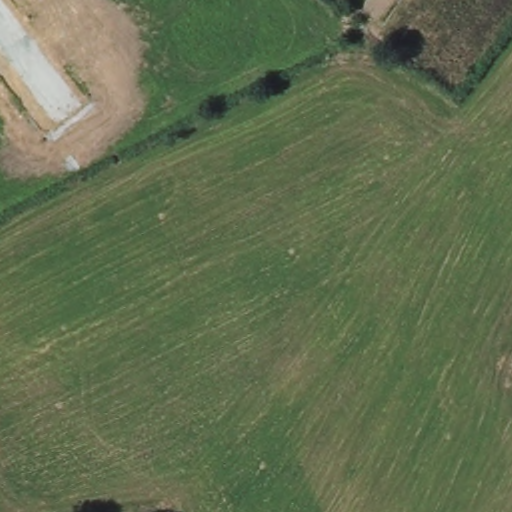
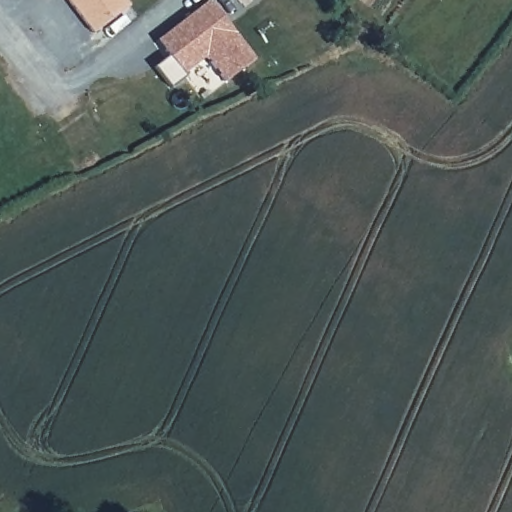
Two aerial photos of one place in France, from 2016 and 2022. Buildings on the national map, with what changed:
new [(130,4),(92,33),(67,0),(126,0),(130,4)]
new [(256,57),(226,82),(206,57),(182,73),(185,76),(171,85),(156,65),(170,56),(157,39),(208,0),(210,0),(256,57)]

